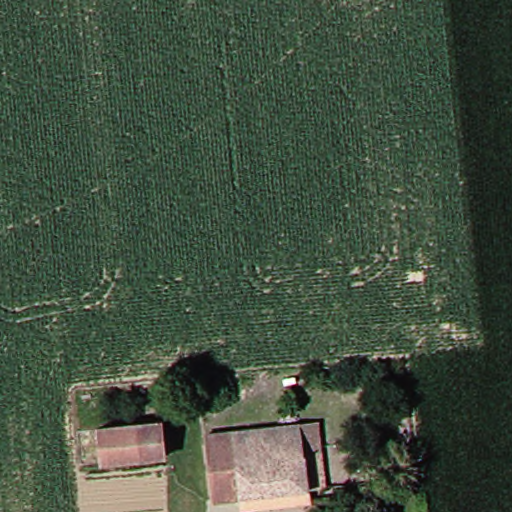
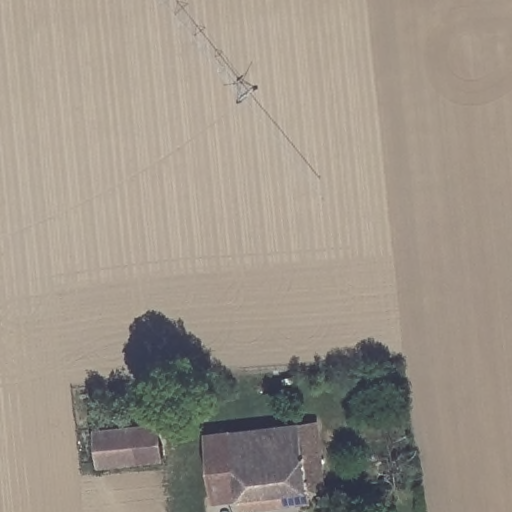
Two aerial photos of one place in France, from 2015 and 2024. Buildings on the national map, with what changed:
unchanged [(165,419),(167,453),(85,460),(83,426),(165,419)]
unchanged [(324,420),(330,483),(311,483),(302,421),(324,420)]
unchanged [(311,483),(242,491),(219,491),(213,430),(302,421),(311,483)]
unchanged [(311,483),(312,498),(245,505),(242,491),(311,483)]

